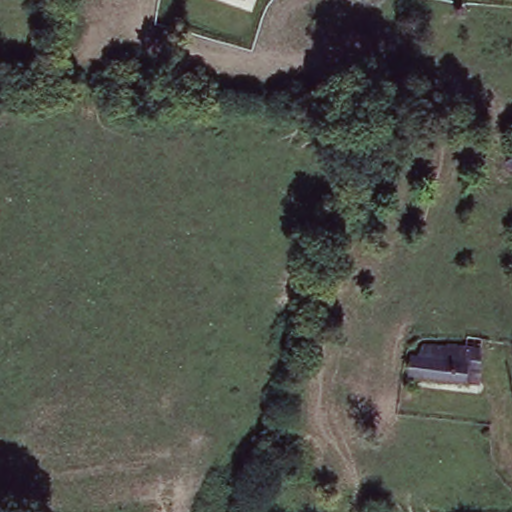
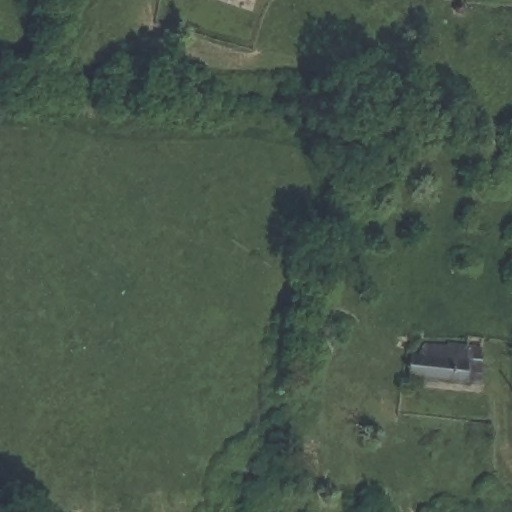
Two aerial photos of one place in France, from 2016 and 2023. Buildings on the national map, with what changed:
unchanged [(451,343),(484,346),(482,382),(429,379),(415,377),(414,355),(420,356),(422,346),(431,347),(450,350),(451,343)]

